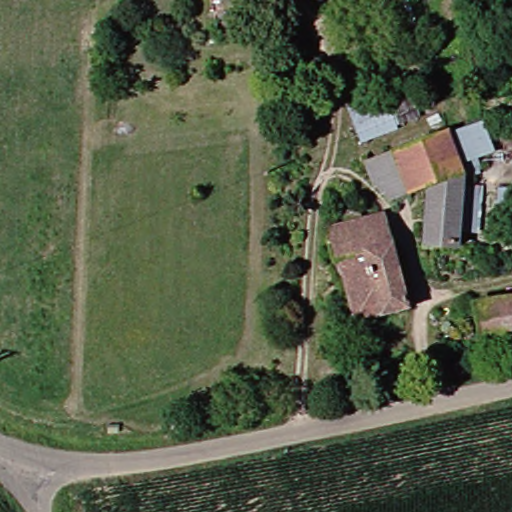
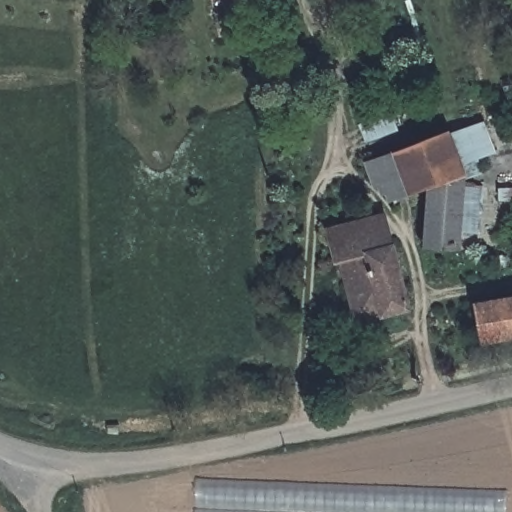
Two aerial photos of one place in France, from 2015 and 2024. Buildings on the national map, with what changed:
unchanged [(352,102),(386,92),(391,102),(420,94),(424,116),(400,123),(403,129),(365,145),(352,102)]
unchanged [(488,121),(499,155),(484,157),(485,168),(468,173),(455,130),(488,121)]
unchanged [(482,230),(466,229),(465,246),(428,245),(431,190),(410,196),(408,190),(392,150),(455,130),(468,173),(470,180),(469,199),(485,200),(482,230)]
unchanged [(390,197),(375,185),(366,158),(392,150),(408,190),(390,197)]
unchanged [(342,257),(336,258),(330,227),(384,216),(392,245),(342,257)]
unchanged [(397,244),(411,306),(355,317),(342,257),(392,245),(397,244)]
unchanged [(479,304),(512,299),(512,334),(484,338),(479,304)]
new [(195,479),(506,491),(506,512),(194,512),(195,479)]
demolished [(100,480),(230,512),(111,512),(100,480)]

